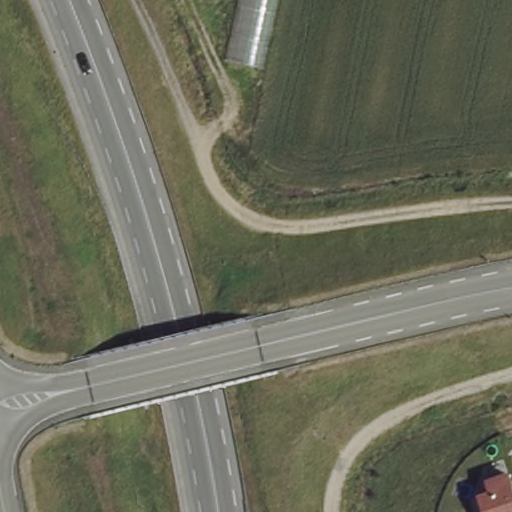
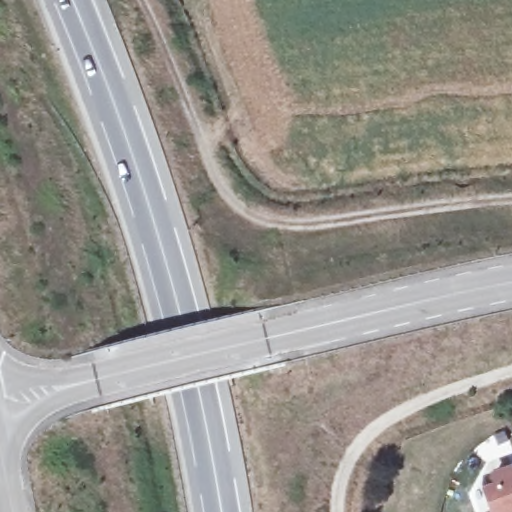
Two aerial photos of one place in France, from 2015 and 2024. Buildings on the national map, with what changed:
demolished [(262,63),(230,59),(235,0),(276,0),(262,63)]
unchanged [(490,473),(511,467),(512,468),(512,512),(488,512),(480,490),(493,487),(490,473)]

